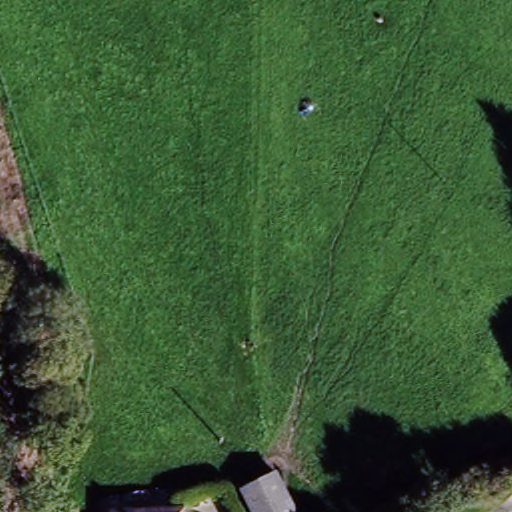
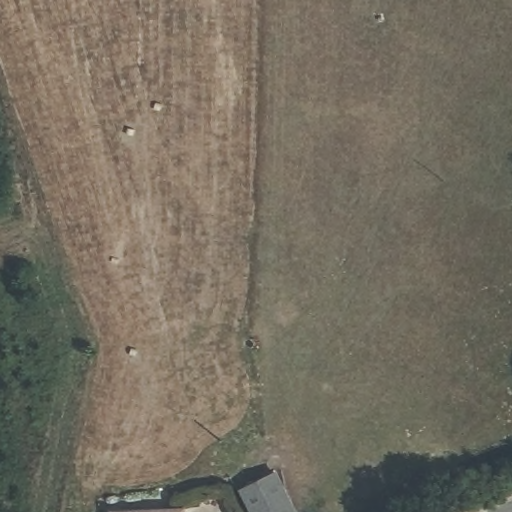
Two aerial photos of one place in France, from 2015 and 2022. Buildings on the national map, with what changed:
unchanged [(289,512),(243,512),(233,493),(270,474),(289,512)]

